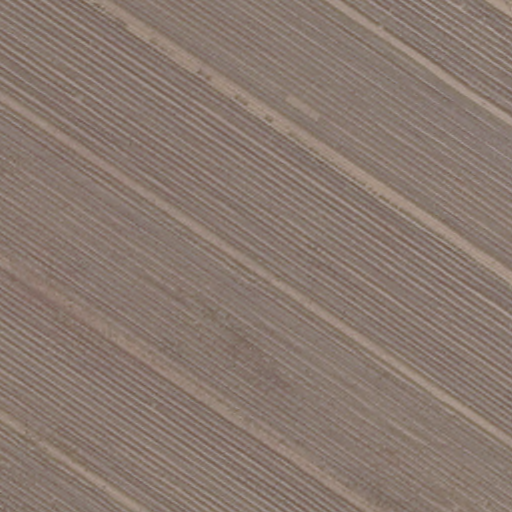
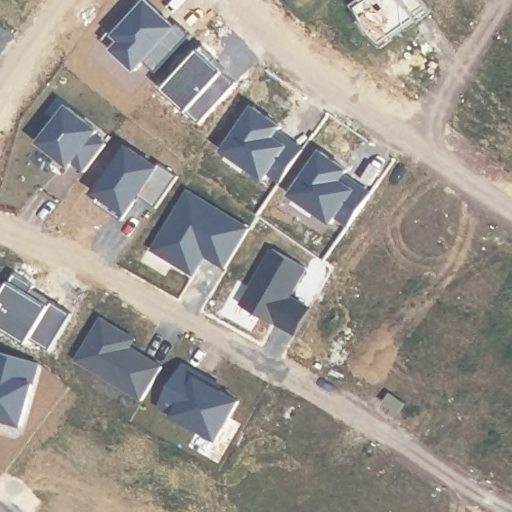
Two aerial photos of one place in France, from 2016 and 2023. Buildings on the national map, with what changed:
new [(143,0),(186,38),(159,69),(145,56),(139,63),(119,45),(125,40),(107,28),(129,0),(143,0)]
new [(237,82),(199,130),(162,100),(201,52),(237,82)]
new [(256,103),(280,119),(271,133),(288,147),(270,174),(250,160),(241,169),(219,154),(256,103)]
new [(69,106),(99,130),(95,134),(107,144),(85,172),(73,162),(70,166),(40,143),(69,106)]
new [(130,147),(158,166),(161,163),(180,176),(157,208),(140,195),(122,219),(96,202),(101,194),(98,193),(130,147)]
new [(323,151),(347,168),(338,181),(356,195),(338,223),(318,209),(309,218),(287,202),(323,151)]
new [(312,273),(296,303),(305,309),(287,339),(244,313),(278,252),(312,273)]
new [(37,301),(55,313),(57,308),(74,319),(52,354),(29,338),(24,345),(0,331),(0,309),(19,279),(42,294),(37,301)]
new [(127,335),(121,344),(156,368),(139,394),(77,354),(98,318),(127,335)]
new [(21,379),(30,382),(16,424),(0,420),(0,350),(27,359),(21,379)]
new [(231,401),(209,439),(158,404),(181,368),(231,401)]
new [(390,395),(406,406),(400,415),(384,404),(390,395)]

